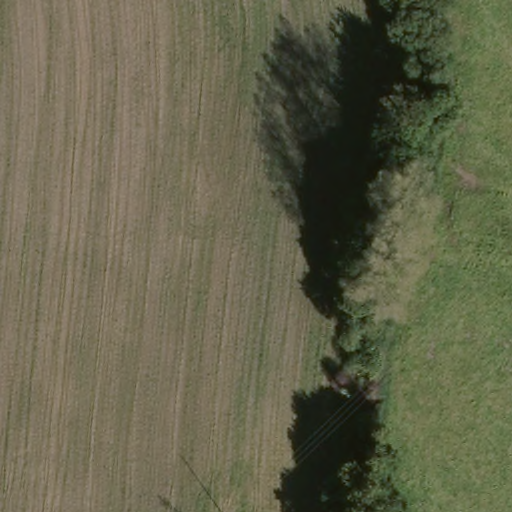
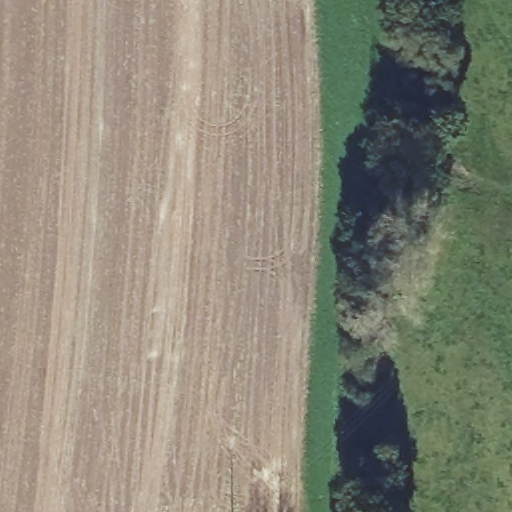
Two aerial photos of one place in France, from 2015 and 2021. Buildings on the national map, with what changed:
[]

